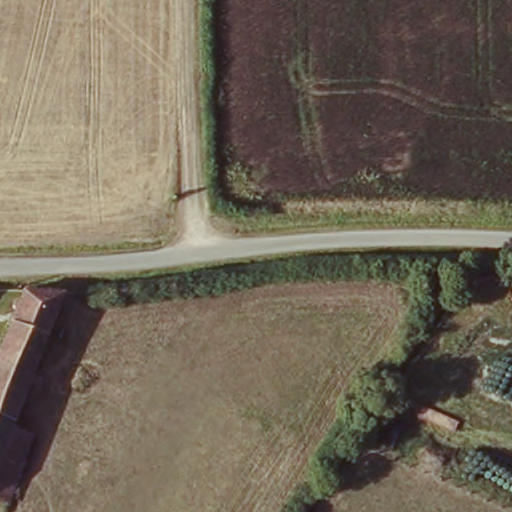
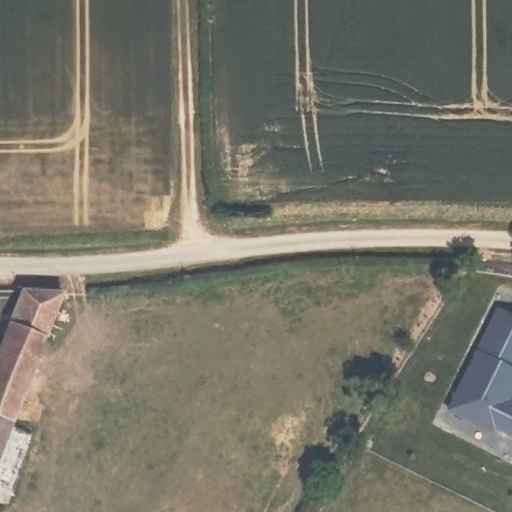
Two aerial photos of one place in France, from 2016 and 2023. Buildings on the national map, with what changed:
unchanged [(0,453),(0,349),(25,292),(69,293),(8,432),(0,453)]
new [(499,308),(512,314),(512,374),(510,378),(512,379),(512,388),(504,403),(512,407),(512,438),(491,428),(490,429),(447,409),(499,308)]
unchanged [(0,453),(8,432),(31,441),(2,510),(0,509),(0,453)]

